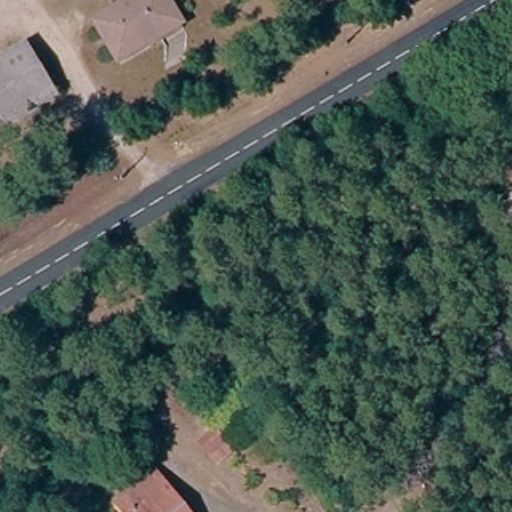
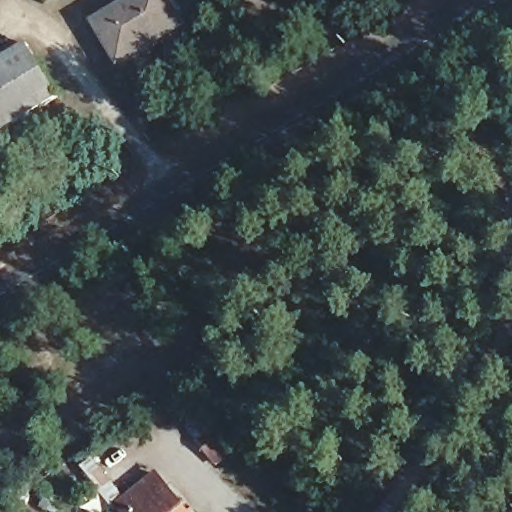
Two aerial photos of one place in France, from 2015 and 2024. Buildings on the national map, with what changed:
unchanged [(134,0),(164,0),(174,14),(114,55),(95,24),(134,0)]
unchanged [(46,100),(0,128),(0,64),(17,54),(46,100)]
unchanged [(216,435),(228,449),(215,460),(203,446),(216,435)]
unchanged [(126,493),(153,471),(187,512),(112,512),(109,507),(126,493)]

